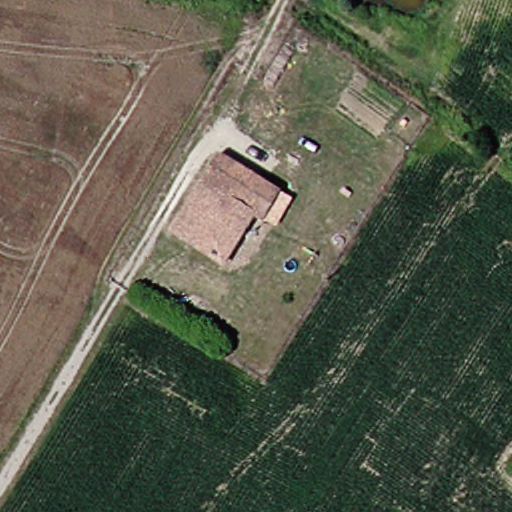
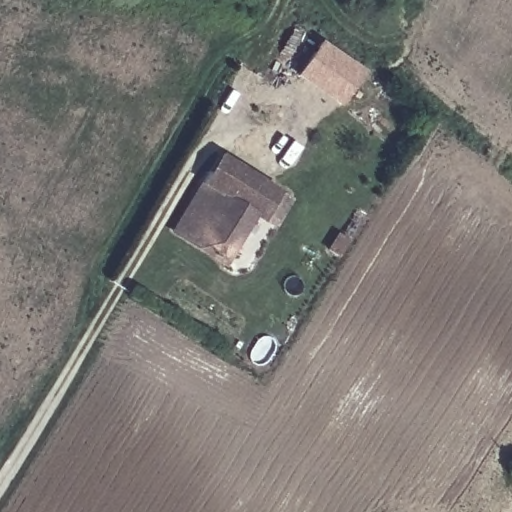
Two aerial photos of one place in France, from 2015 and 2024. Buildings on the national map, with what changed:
new [(327,40),(365,67),(343,99),(304,72),(327,40)]
unchanged [(213,151),(275,189),(259,215),(250,209),(198,177),(213,151)]
unchanged [(250,209),(216,259),(166,229),(198,177),(250,209)]

